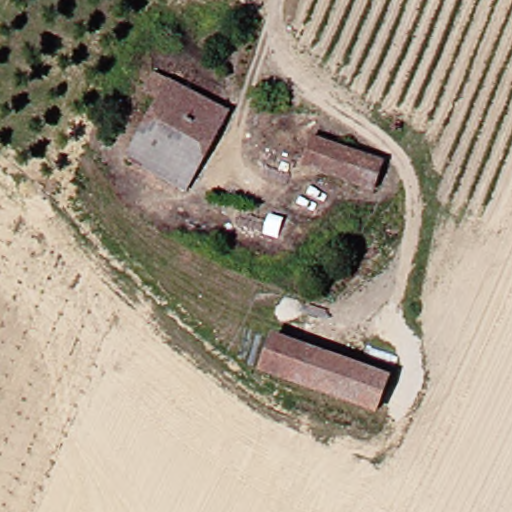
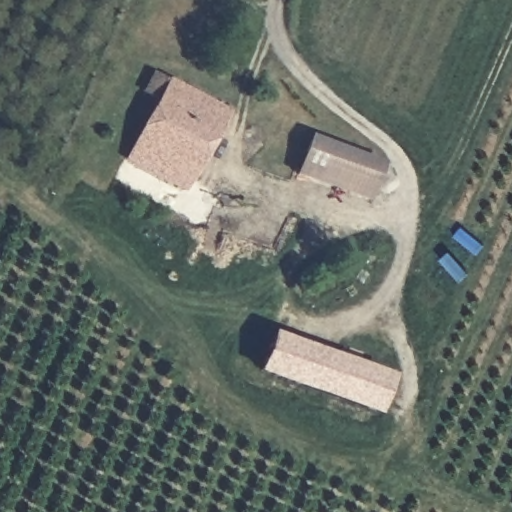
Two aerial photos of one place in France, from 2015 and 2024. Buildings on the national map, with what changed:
unchanged [(180,185),(123,154),(151,97),(131,84),(142,65),(222,110),(214,122),(197,156),(180,185)]
unchanged [(293,164),(304,135),(373,163),(361,190),(293,164)]
unchanged [(368,412),(274,375),(254,367),(265,338),(287,345),(378,381),(368,412)]

